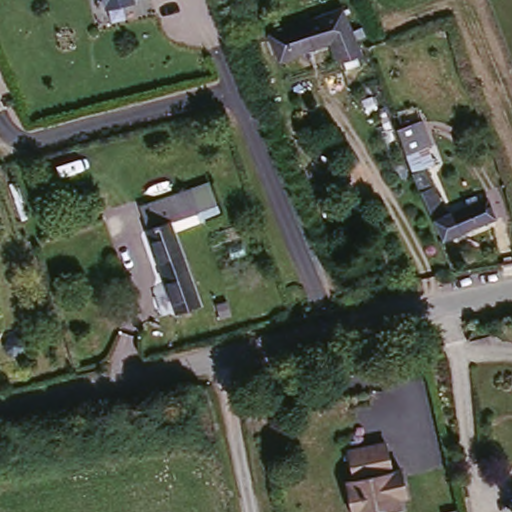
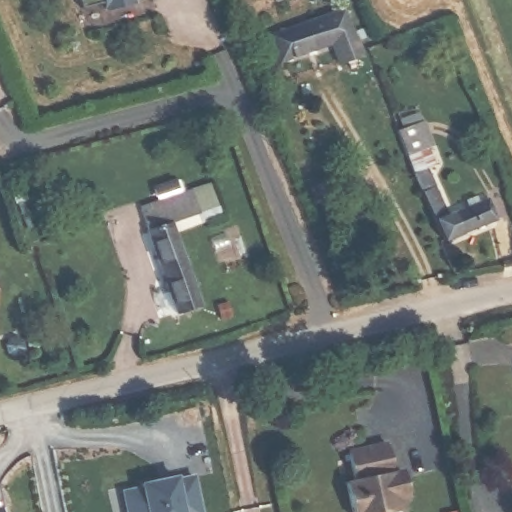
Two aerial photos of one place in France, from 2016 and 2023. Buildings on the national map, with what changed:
unchanged [(118,0),(102,4),(101,0),(118,0)]
unchanged [(340,57),(334,43),(282,62),(273,33),(345,6),(365,48),(340,57)]
unchanged [(389,136),(429,127),(438,150),(400,162),(389,136)]
unchanged [(410,180),(434,172),(452,211),(493,196),(499,218),(474,227),(460,234),(438,241),(410,180)]
unchanged [(213,182),(225,211),(183,223),(171,194),(213,182)]
unchanged [(183,223),(173,226),(149,236),(138,208),(171,194),(183,223)]
unchanged [(173,226),(183,256),(201,307),(181,316),(149,236),(173,226)]
unchanged [(389,442),(393,466),(398,466),(405,491),(401,496),(403,507),(391,511),(391,512),(357,512),(351,485),(357,483),(350,449),(389,442)]
new [(123,492),(194,476),(202,512),(127,512),(123,492)]
new [(1,509),(2,512),(0,512),(0,510),(1,509)]

